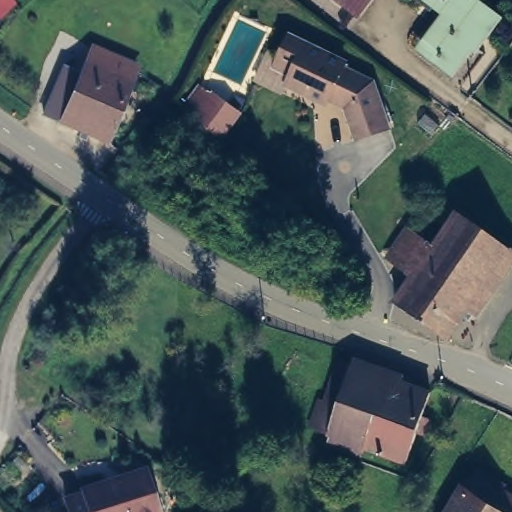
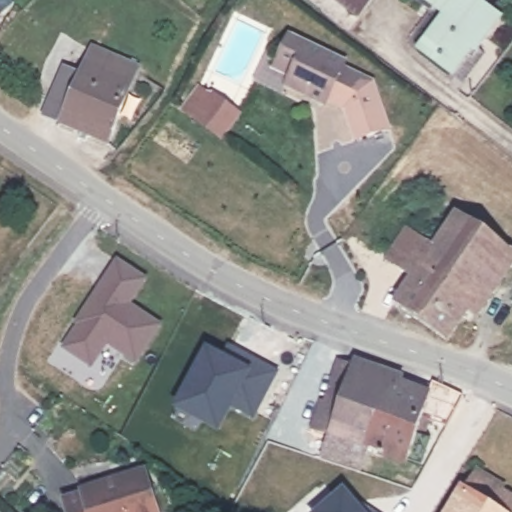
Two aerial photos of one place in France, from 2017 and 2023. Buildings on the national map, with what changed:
unchanged [(0,0),(8,0),(0,11),(0,0)]
unchanged [(363,0),(373,0),(369,5),(363,0)]
unchanged [(469,41),(472,46),(449,75),(416,48),(442,14),(425,0),(474,0),(492,14),(469,41)]
unchanged [(339,58),(335,67),(346,72),(349,68),(369,78),(384,126),(353,137),(342,104),(325,95),(315,99),(285,83),(289,74),(270,66),(275,54),(285,31),(339,58)]
unchanged [(107,143),(53,119),(37,112),(56,64),(72,70),(82,42),(120,59),(135,67),(107,143)]
unchanged [(225,139),(182,106),(201,85),(242,113),(225,139)]
unchanged [(410,278),(387,260),(410,227),(429,236),(455,203),(480,214),(512,242),(512,262),(505,271),(475,312),(462,307),(447,332),(389,307),(410,278)]
new [(102,283),(99,281),(117,254),(144,271),(127,297),(160,317),(137,353),(107,334),(92,358),(65,341),(102,283)]
new [(202,359),(200,358),(210,344),(223,351),(230,337),(244,344),(277,361),(255,406),(230,393),(219,415),(196,403),(184,396),(185,392),(202,359)]
unchanged [(436,404),(427,425),(435,430),(430,440),(422,437),(407,471),(314,432),(325,405),(330,406),(349,366),(436,404)]
unchanged [(459,486),(469,472),(512,499),(512,512),(499,512),(459,486)]
unchanged [(85,495),(83,490),(143,473),(154,512),(71,512),(67,500),(85,495)]
unchanged [(459,486),(499,512),(443,512),(459,486)]
new [(342,492),(360,512),(321,512),(342,492)]

